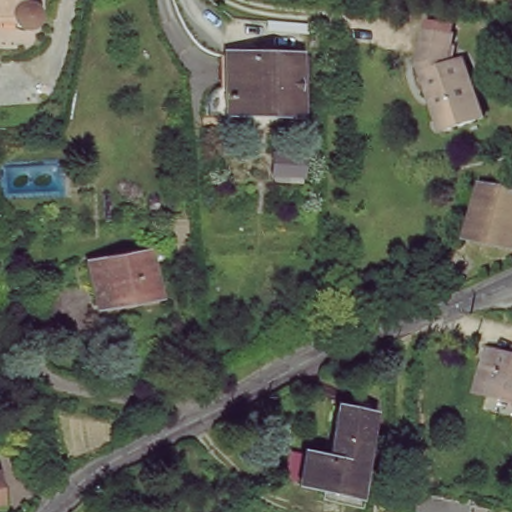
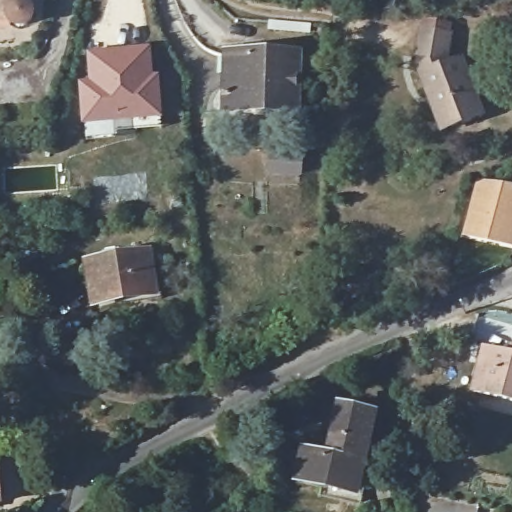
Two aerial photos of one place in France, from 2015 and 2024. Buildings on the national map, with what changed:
unchanged [(28,8),(28,15),(25,20),(20,22),(14,23),(9,21),(6,18),(4,15),(0,14),(0,0),(23,0),(27,5),(28,8)]
unchanged [(443,132),(417,65),(423,31),(449,36),(444,66),(462,60),(483,117),(443,132)]
new [(88,81),(88,50),(152,46),(155,75),(161,75),(163,122),(119,127),(82,127),(78,82),(88,81)]
unchanged [(302,109),(230,106),(232,51),(304,55),(302,109)]
unchanged [(510,248),(463,237),(475,186),(512,191),(512,239),(510,248)]
unchanged [(156,295),(94,305),(87,262),(149,252),(156,295)]
unchanged [(473,387),(480,362),(485,344),(492,346),(511,351),(512,347),(512,398),(473,387)]
unchanged [(323,482),(299,477),(304,450),(329,455),(341,400),(373,407),(362,457),(369,458),(362,497),(344,494),(324,491),(321,490),(323,482)]
unchanged [(399,507),(399,497),(390,498),(386,472),(409,467),(414,494),(411,495),(411,506),(399,507)]
unchanged [(0,507),(0,500),(1,507),(0,507)]

